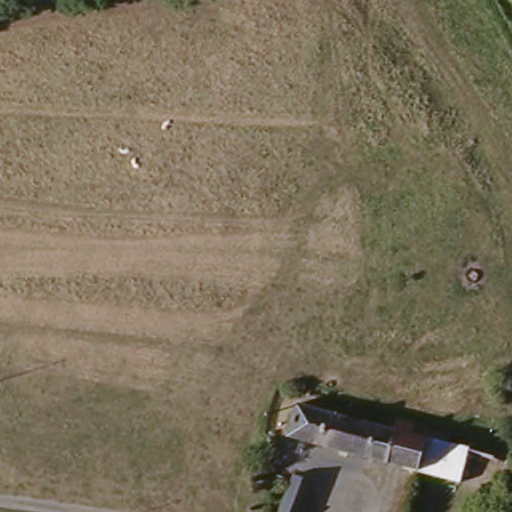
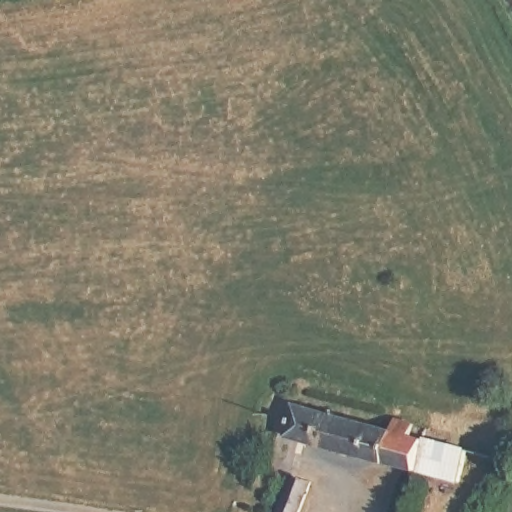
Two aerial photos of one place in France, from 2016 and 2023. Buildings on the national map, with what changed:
unchanged [(420,472),(361,455),(293,433),(302,401),(398,427),(403,415),(447,430),(444,440),(473,449),(462,485),(420,472)]
unchanged [(286,483),(291,470),(312,477),(300,512),(276,512),(286,483)]

